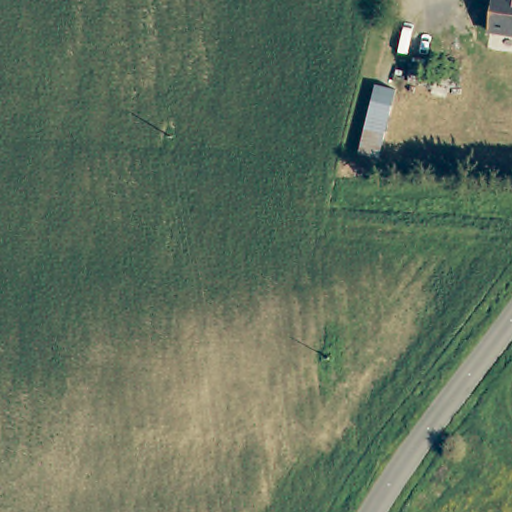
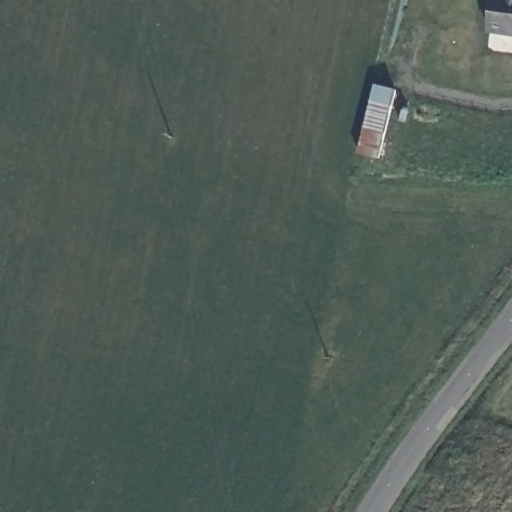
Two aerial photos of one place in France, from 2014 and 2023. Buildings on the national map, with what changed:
unchanged [(494,34),(497,0),(512,0),(512,36),(494,34)]
unchanged [(375,136),(362,132),(379,65),(392,68),(399,70),(382,137),(375,136)]

